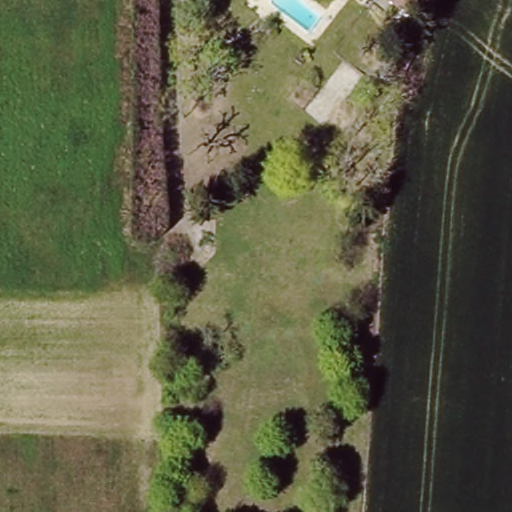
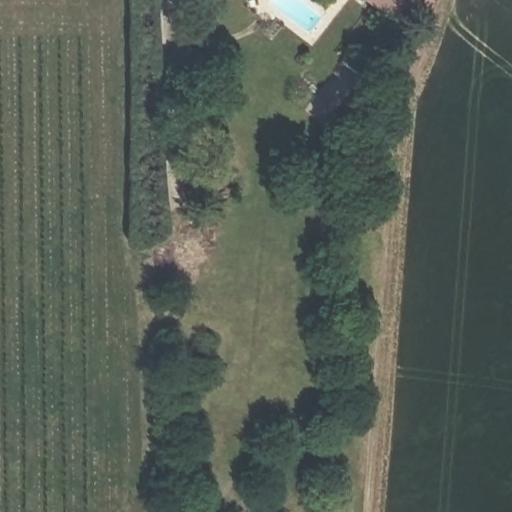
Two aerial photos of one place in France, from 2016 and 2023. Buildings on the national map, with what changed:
unchanged [(424,15),(395,5),(387,0),(433,0),(424,15)]

